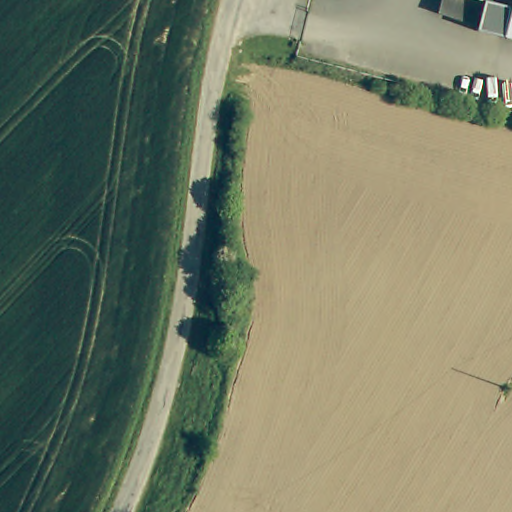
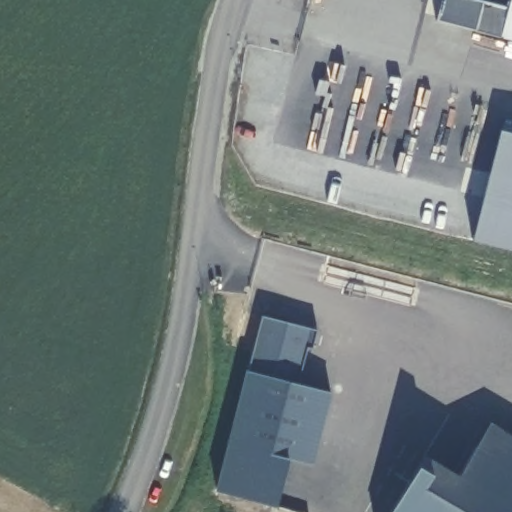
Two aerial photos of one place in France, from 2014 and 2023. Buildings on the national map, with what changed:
unchanged [(506,38),(437,14),(441,0),(512,0),(512,39),(506,38)]
new [(313,346),(308,346),(299,383),(333,390),(313,466),(290,458),(277,506),(215,492),(248,370),(262,314),(317,329),(313,346)]
new [(423,450),(460,473),(489,419),(512,433),(512,512),(390,512),(418,464),(423,450)]

